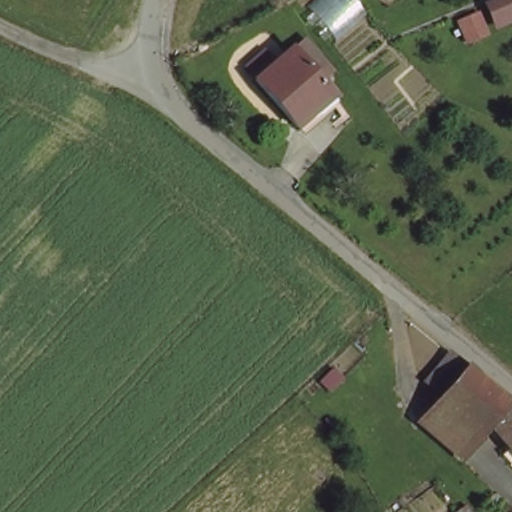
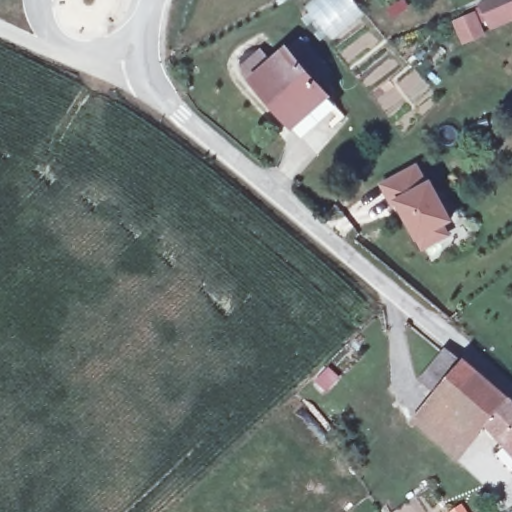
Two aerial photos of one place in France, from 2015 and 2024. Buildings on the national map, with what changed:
unchanged [(331,38),(303,4),(308,0),(356,0),(363,7),(331,38)]
unchanged [(512,0),(512,10),(484,21),(477,3),(476,2),(482,0),(512,0)]
unchanged [(478,33),(458,40),(451,16),(472,9),(478,33)]
unchanged [(316,66),(306,77),(320,96),(288,125),(246,79),(278,49),(283,52),(294,41),(316,66)]
new [(412,169),(422,187),(426,185),(446,221),(437,226),(443,236),(419,249),(394,203),(389,206),(379,187),(412,169)]
unchanged [(474,443),(431,404),(436,398),(419,382),(442,356),(461,371),(512,419),(512,460),(486,432),(474,443)]
unchanged [(474,443),(458,461),(414,422),(431,404),(474,443)]

